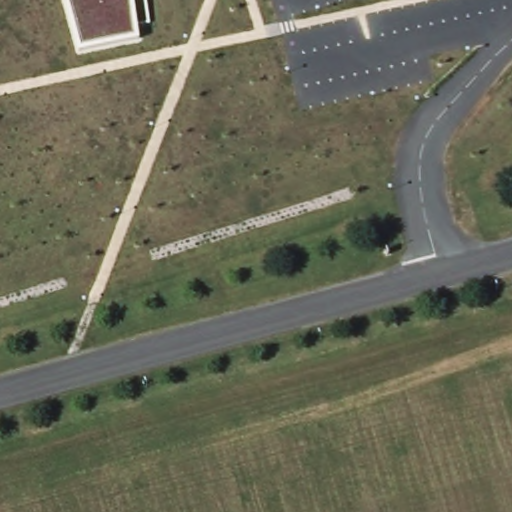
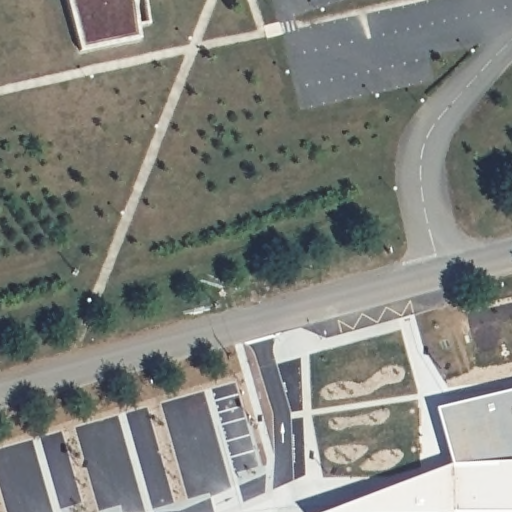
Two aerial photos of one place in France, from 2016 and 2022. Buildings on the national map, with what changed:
unchanged [(77,50),(64,0),(133,0),(139,39),(77,50)]
new [(456,465),(440,410),(512,393),(512,512),(332,512),(456,465)]

